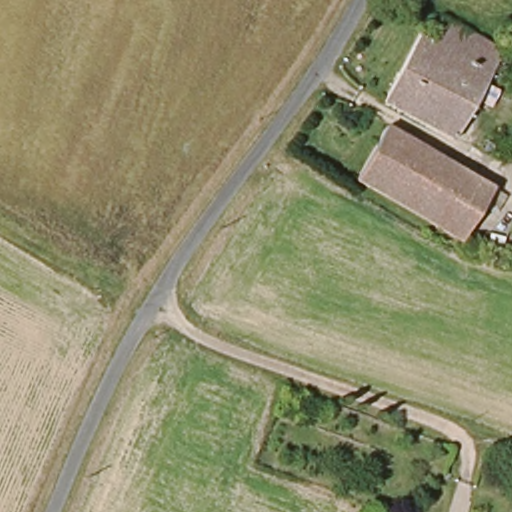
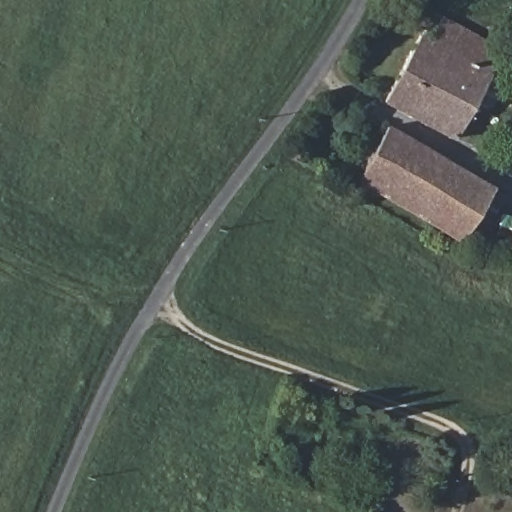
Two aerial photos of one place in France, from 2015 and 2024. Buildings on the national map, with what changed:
unchanged [(498,49),(456,135),(387,100),(418,34),(429,40),(440,18),(498,49)]
unchanged [(497,185),(472,239),(357,184),(384,130),(497,185)]

